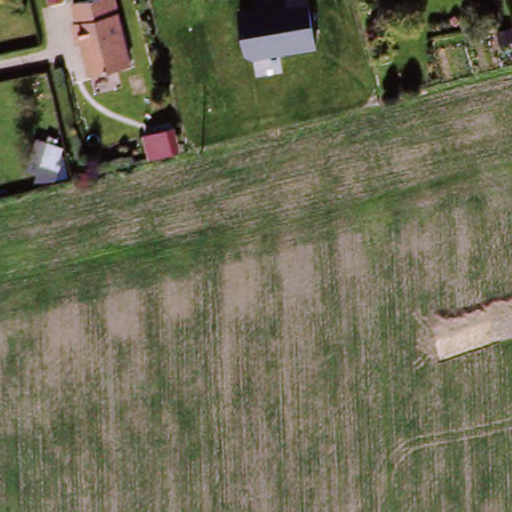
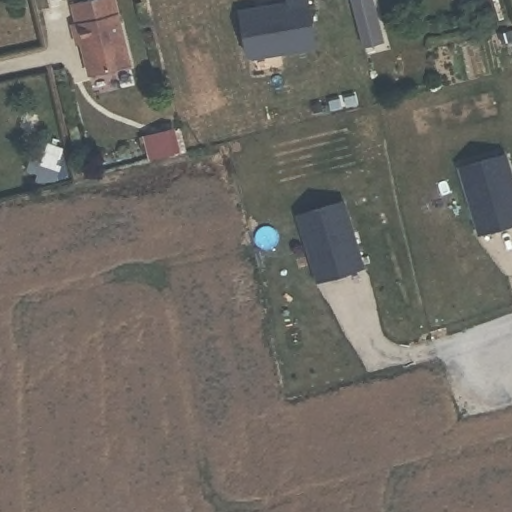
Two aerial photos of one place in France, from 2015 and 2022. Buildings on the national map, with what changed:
unchanged [(311,0),(318,48),(246,59),(238,11),(302,0),(311,0)]
new [(364,45),(353,0),(374,0),(383,40),(364,45)]
unchanged [(76,44),(71,24),(120,13),(132,65),(90,74),(83,42),(76,44)]
unchanged [(489,41),(502,38),(505,51),(493,54),(489,41)]
unchanged [(138,130),(163,124),(168,144),(144,150),(138,130)]
new [(505,155),(512,179),(512,224),(506,226),(506,224),(497,226),(498,229),(479,234),(460,168),(505,155)]
new [(343,201),(363,266),(344,272),(344,269),(336,272),(336,274),(318,280),(298,214),(343,201)]

